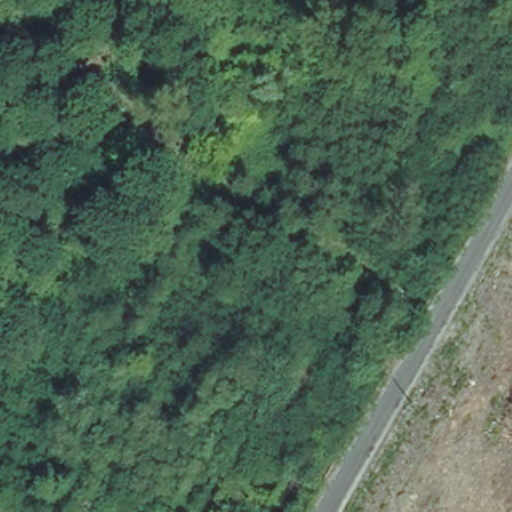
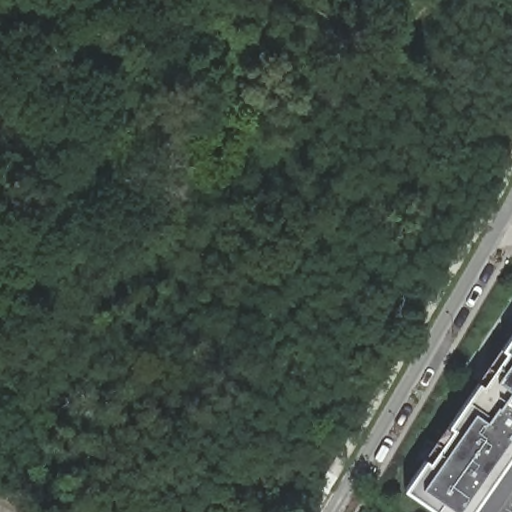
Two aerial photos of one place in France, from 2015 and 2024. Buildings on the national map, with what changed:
unchanged [(338,355),(302,420),(269,403),(305,336),(338,355)]
new [(438,512),(406,490),(512,336),(512,457),(473,512),(438,512)]
unchanged [(302,484),(286,511),(272,502),(288,476),(302,484)]

